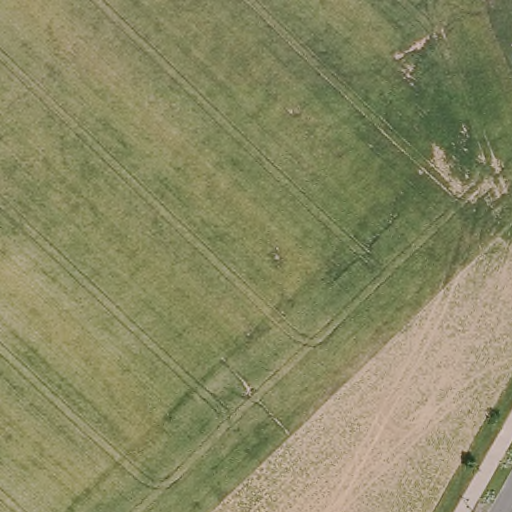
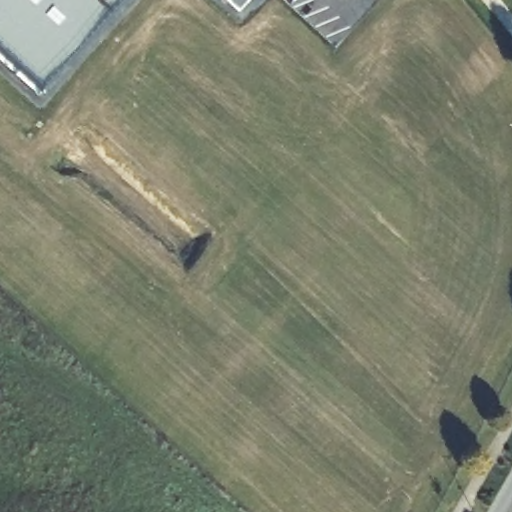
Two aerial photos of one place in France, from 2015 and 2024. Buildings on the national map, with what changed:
new [(0,59),(0,0),(127,0),(40,97),(0,59)]

